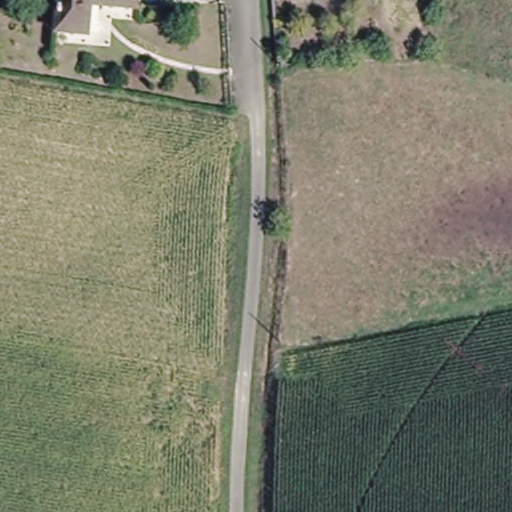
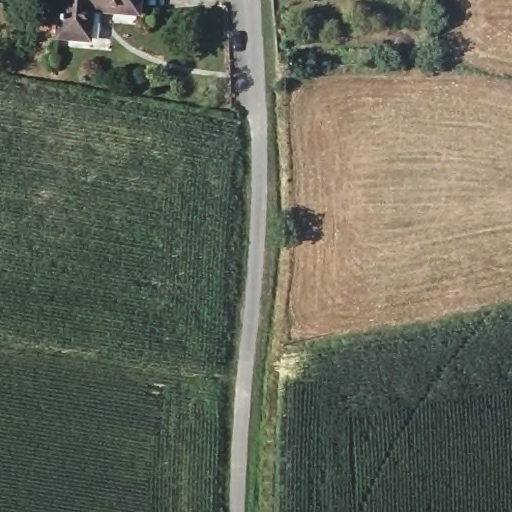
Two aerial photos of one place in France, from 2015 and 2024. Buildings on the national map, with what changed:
unchanged [(139,15),(95,13),(94,41),(52,39),(55,0),(140,0),(139,15)]

